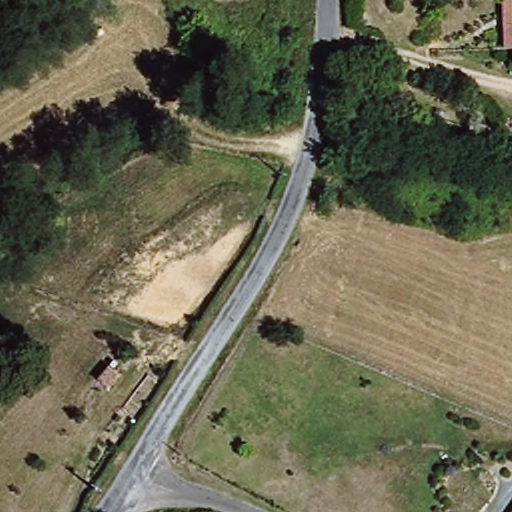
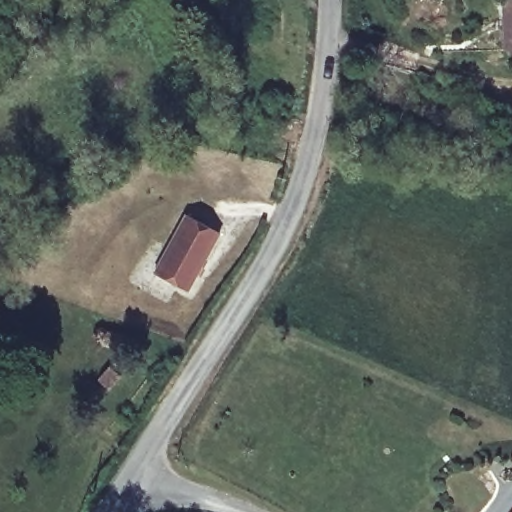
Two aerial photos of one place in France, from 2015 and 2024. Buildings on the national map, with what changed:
unchanged [(502,0),(512,0),(512,36),(502,0)]
new [(222,233),(190,292),(153,272),(184,214),(222,233)]

